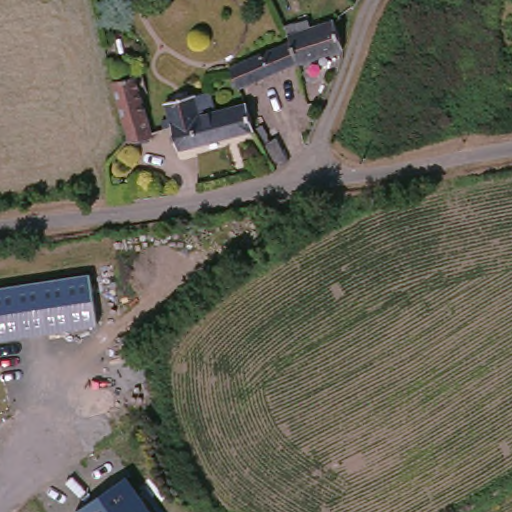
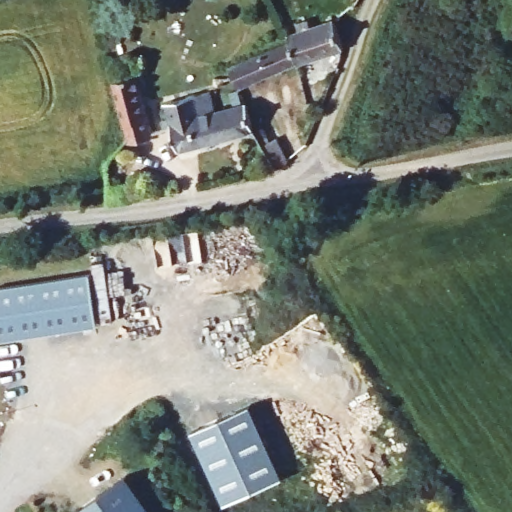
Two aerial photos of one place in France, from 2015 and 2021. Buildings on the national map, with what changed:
unchanged [(324,13),(330,31),(322,37),(323,44),(283,63),(285,69),(229,96),(217,67),(272,39),(312,20),(324,13)]
unchanged [(134,70),(162,136),(137,145),(116,79),(134,70)]
unchanged [(186,159),(173,132),(187,127),(209,114),(232,102),(245,132),(186,159)]
unchanged [(273,143),(288,137),(293,157),(282,165),(273,143)]
unchanged [(137,175),(147,172),(156,196),(144,197),(137,175)]
unchanged [(94,323),(0,337),(0,286),(87,271),(94,323)]
new [(246,411),(279,484),(222,509),(189,436),(246,411)]
unchanged [(152,512),(76,512),(126,475),(152,512)]

